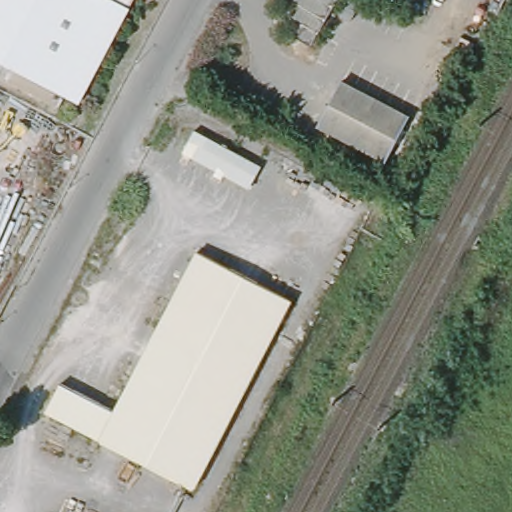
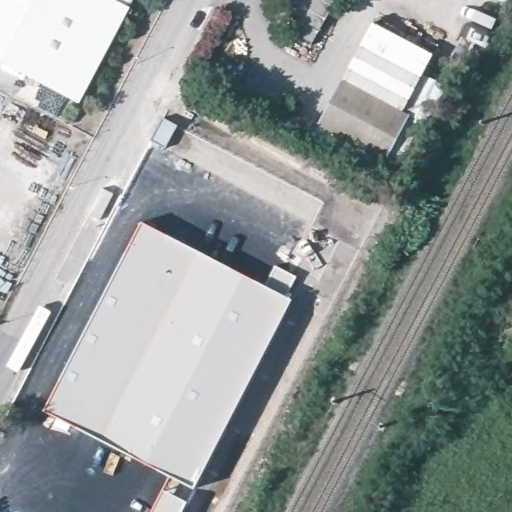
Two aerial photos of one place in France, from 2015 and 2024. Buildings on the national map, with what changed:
unchanged [(76,100),(0,59),(0,0),(130,0),(123,11),(76,100)]
unchanged [(306,26),(301,19),(299,10),(296,1),(295,0),(339,0),(316,44),(301,35),(306,26)]
new [(434,54),(402,115),(342,83),(373,21),(434,54)]
unchanged [(319,128),(342,83),(409,119),(386,164),(319,128)]
unchanged [(253,190),(186,155),(196,135),(263,169),(253,190)]
new [(199,249),(196,255),(111,414),(58,386),(143,222),(199,249)]
unchanged [(38,414),(54,384),(111,414),(196,255),(294,304),(193,498),(38,414)]
new [(193,498),(185,512),(152,512),(166,483),(193,498)]

